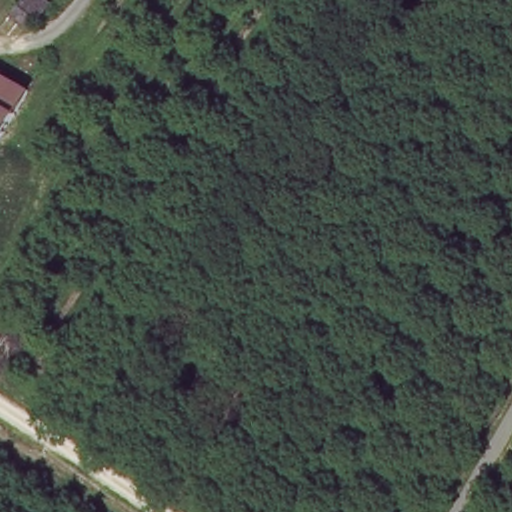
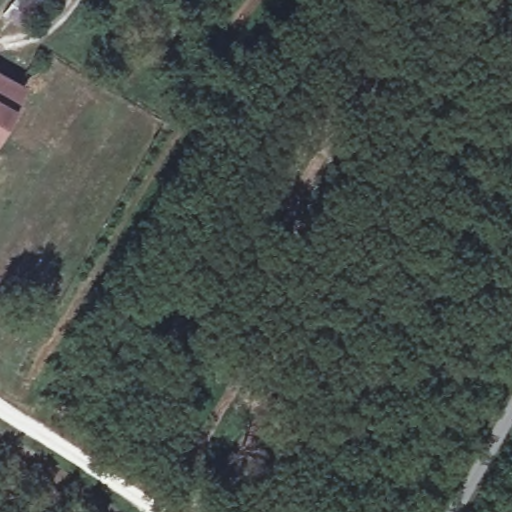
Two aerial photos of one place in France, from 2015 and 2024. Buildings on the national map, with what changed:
unchanged [(12,12),(19,0),(37,0),(44,4),(31,25),(12,12)]
unchanged [(0,125),(0,81),(20,92),(0,125)]

